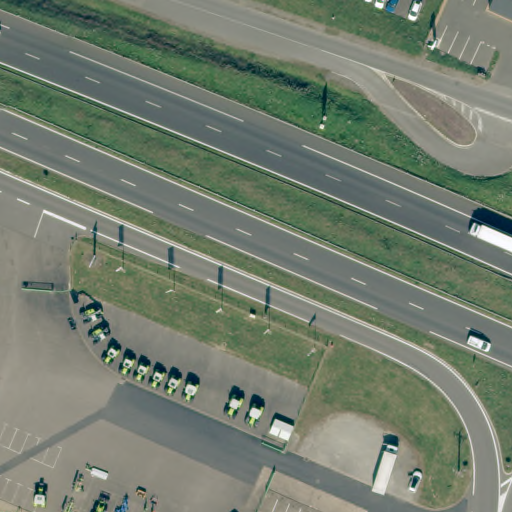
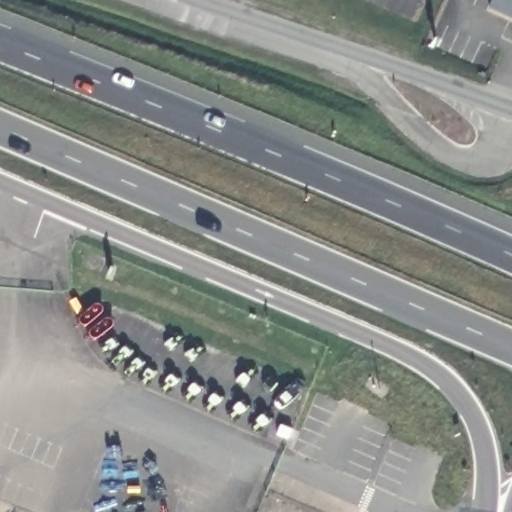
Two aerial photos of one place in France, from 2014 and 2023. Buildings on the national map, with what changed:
unchanged [(490,7),(494,0),(512,0),(512,16),(490,7)]

